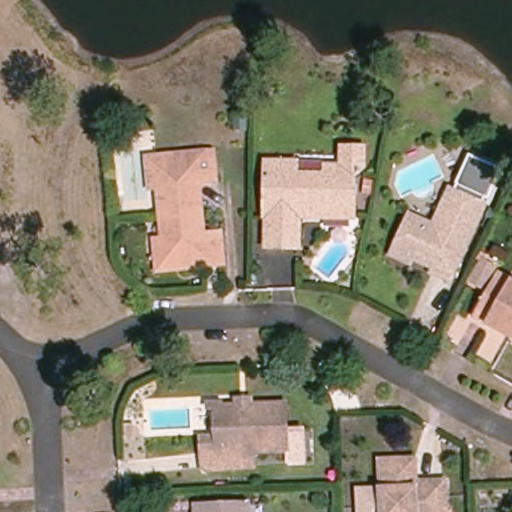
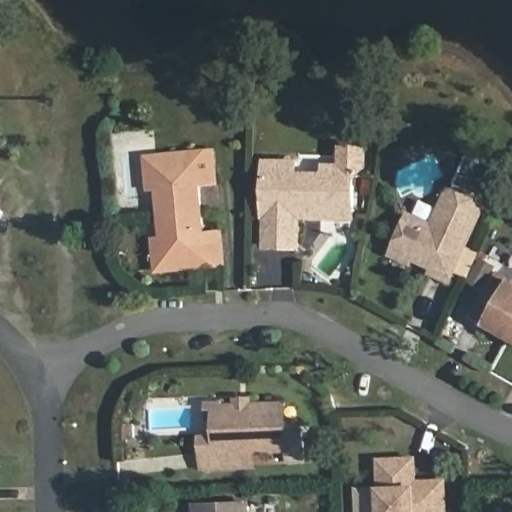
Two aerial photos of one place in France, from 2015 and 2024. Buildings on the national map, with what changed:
unchanged [(260,249),(263,157),(300,157),(300,169),(322,169),(322,159),(338,160),(339,142),(367,142),(367,168),(358,168),(357,221),(303,219),(302,250),(260,249)]
unchanged [(204,232),(220,231),(223,267),(207,269),(206,260),(159,265),(156,237),(151,191),(149,163),(197,159),(195,150),(212,149),(215,185),(199,187),(204,232)]
unchanged [(484,205),(449,281),(432,273),(434,268),(394,249),(409,215),(434,226),(450,190),(484,205)]
unchanged [(506,274),(495,293),(481,286),(492,266),(506,274)]
unchanged [(510,277),(512,278),(512,338),(484,323),(510,277)]
unchanged [(287,403),(289,449),(241,452),(242,467),(205,469),(204,454),(219,453),(217,408),(223,408),(223,406),(287,403)]
unchanged [(443,512),(379,512),(377,462),(412,460),(412,482),(442,481),(443,512)]
unchanged [(249,505),(250,512),(197,512),(197,507),(249,505)]

